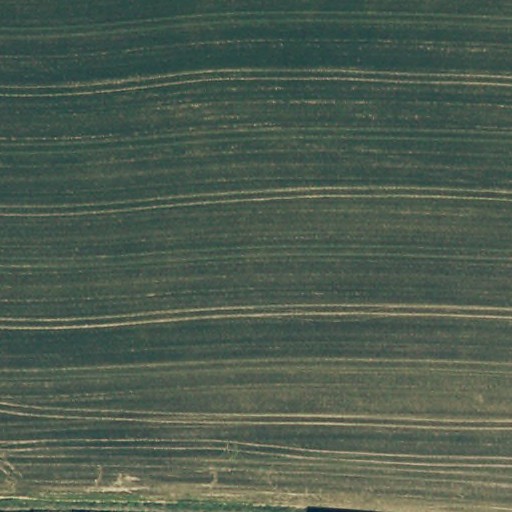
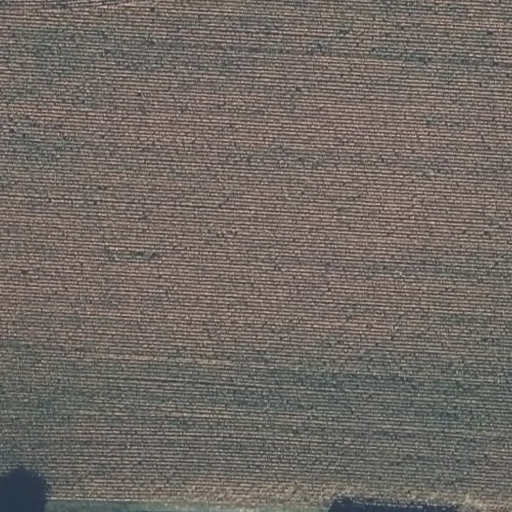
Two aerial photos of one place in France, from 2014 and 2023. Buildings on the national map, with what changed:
[]

